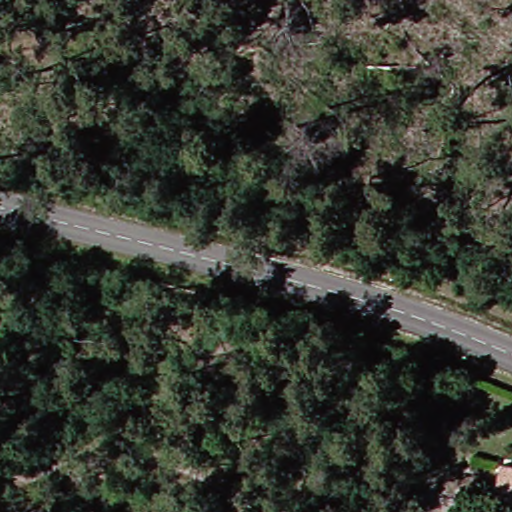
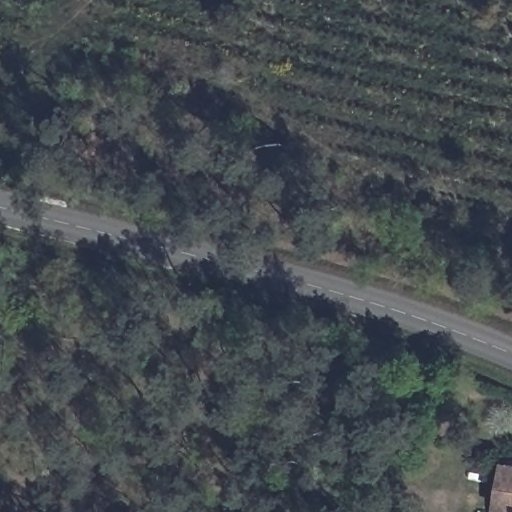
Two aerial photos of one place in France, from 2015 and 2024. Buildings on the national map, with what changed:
demolished [(491,494),(495,480),(501,452),(512,456),(512,499),(491,494)]
new [(511,512),(511,511),(494,509),(501,460),(512,462),(512,512),(511,512)]

